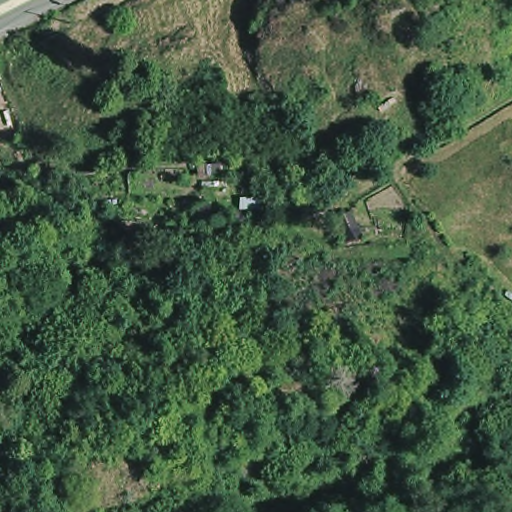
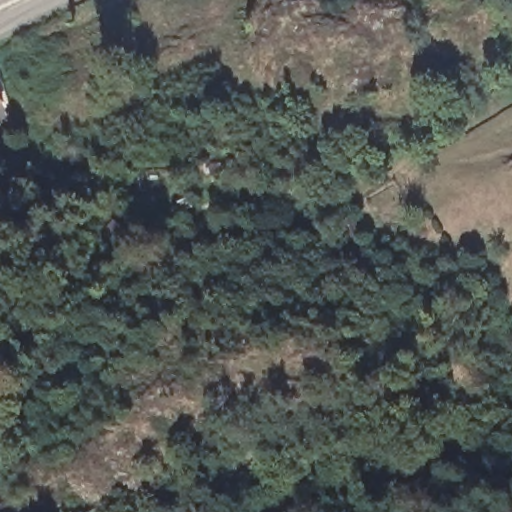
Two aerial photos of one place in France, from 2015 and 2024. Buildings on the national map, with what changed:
unchanged [(0,103),(0,99),(1,102),(0,103)]

